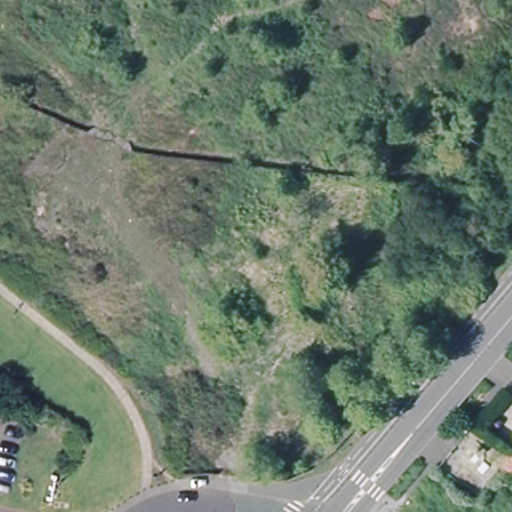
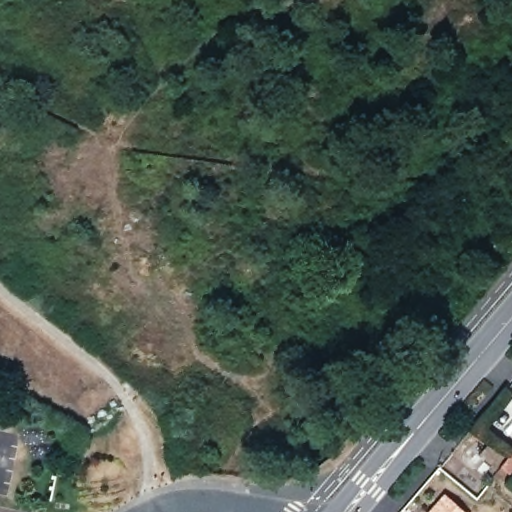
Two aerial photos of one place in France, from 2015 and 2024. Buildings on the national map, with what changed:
unchanged [(484,223),(475,233),(466,225),(476,216),(484,223)]
new [(512,474),(510,477),(499,467),(512,452),(512,474)]
new [(465,512),(427,512),(445,494),(465,512)]

